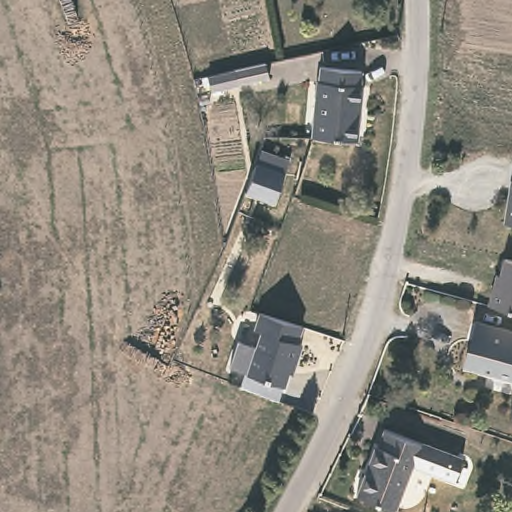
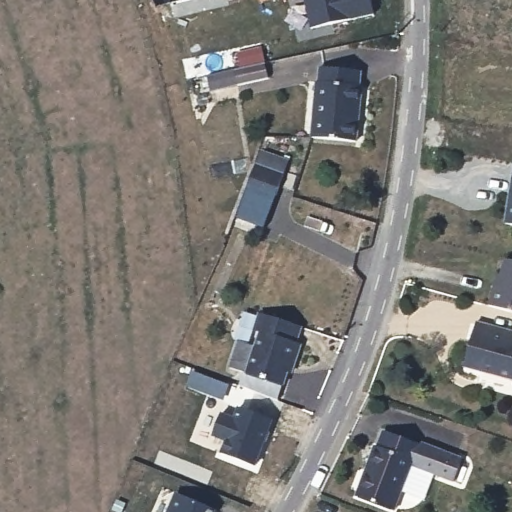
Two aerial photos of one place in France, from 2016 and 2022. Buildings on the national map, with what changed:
new [(311,27),(305,0),(372,0),(375,13),(311,27)]
unchanged [(266,60),(271,76),(238,87),(235,87),(215,94),(210,79),(232,72),(234,71),(266,60)]
unchanged [(360,86),(362,86),(362,142),(315,143),(315,135),(315,87),(318,87),(317,73),(360,72),(360,86)]
unchanged [(276,202),(247,191),(249,186),(258,163),(263,151),(288,161),(283,173),(287,175),(276,202)]
unchanged [(505,223),(510,197),(512,198),(512,225),(505,223)]
unchanged [(512,260),(512,311),(490,304),(493,285),(498,286),(505,258),(512,260)]
unchanged [(237,341),(252,347),(257,334),(250,331),(257,313),(300,329),(295,345),(299,346),(291,368),(287,366),(280,388),(242,374),(226,367),(237,341)]
unchanged [(463,368),(476,324),(512,335),(512,383),(463,368)]
new [(256,466),(220,453),(225,441),(212,437),(222,411),(234,416),(237,406),(273,420),(256,466)]
unchanged [(427,445),(428,443),(462,458),(453,481),(418,466),(418,465),(410,461),(390,510),(351,494),(371,444),(375,445),(383,427),(427,445)]
new [(215,512),(168,512),(177,492),(216,509),(215,512)]

